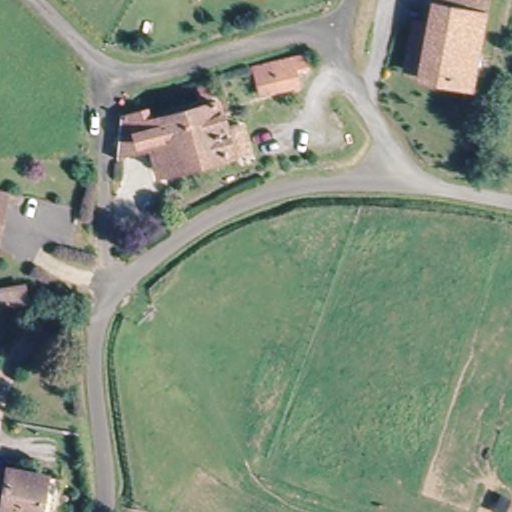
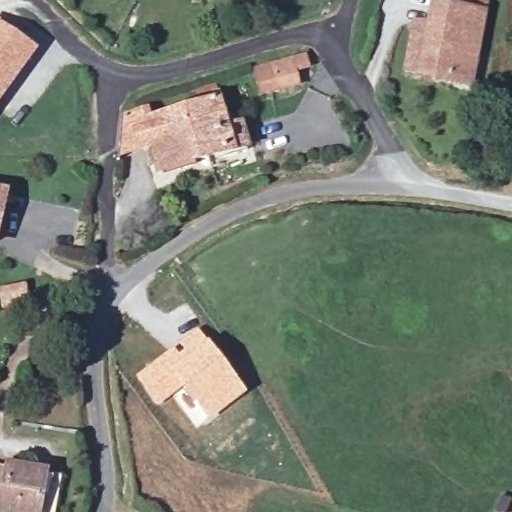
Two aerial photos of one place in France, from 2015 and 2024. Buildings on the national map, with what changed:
unchanged [(436,0),(487,0),(471,76),(469,86),(451,81),(420,74),(406,71),(417,21),(431,24),(436,0)]
new [(0,105),(0,23),(39,51),(0,105)]
unchanged [(254,89),(289,77),(298,102),(262,114),(254,89)]
unchanged [(252,161),(238,164),(235,158),(164,175),(156,148),(124,155),(128,121),(148,116),(150,126),(222,109),(230,139),(244,136),(252,161)]
unchanged [(0,189),(9,192),(0,229),(0,189)]
new [(198,328),(248,393),(209,421),(183,388),(159,405),(136,375),(198,328)]
unchanged [(0,466),(54,482),(45,512),(0,512),(0,466)]

